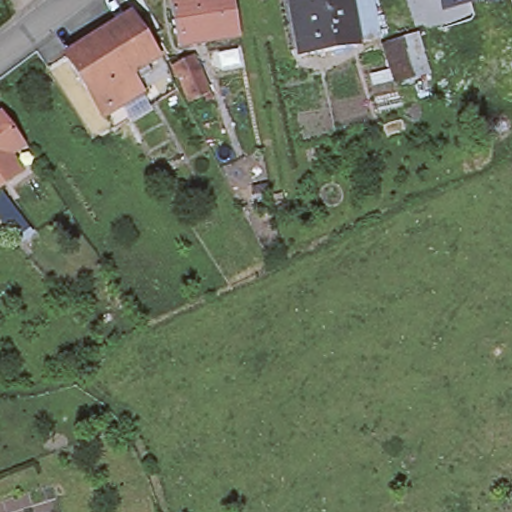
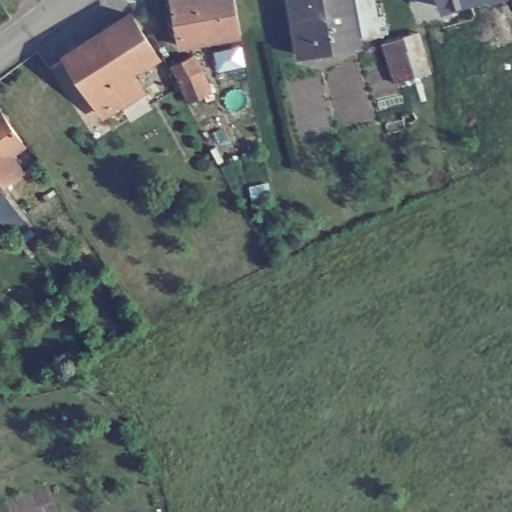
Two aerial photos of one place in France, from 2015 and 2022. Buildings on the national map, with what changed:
unchanged [(179,45),(170,0),(198,0),(206,40),(179,45)]
unchanged [(239,34),(206,40),(198,0),(234,0),(239,34)]
unchanged [(352,43),(292,52),(284,0),(345,0),(352,43)]
unchanged [(439,0),(477,0),(442,10),(439,0)]
unchanged [(488,3),(485,0),(499,0),(488,3)]
unchanged [(130,15),(157,56),(133,71),(120,51),(118,52),(105,31),(130,15)]
unchanged [(437,76),(388,88),(378,44),(424,29),(437,76)]
unchanged [(92,98),(65,56),(88,42),(105,31),(118,52),(120,51),(133,71),(132,72),(142,90),(125,101),(120,104),(109,87),(92,98)]
unchanged [(216,91),(188,105),(172,65),(198,54),(216,91)]
unchanged [(0,180),(0,112),(23,145),(11,154),(23,173),(5,186),(0,190),(0,180)]

